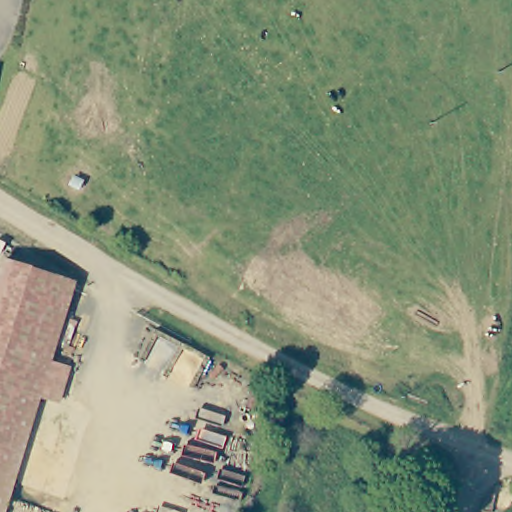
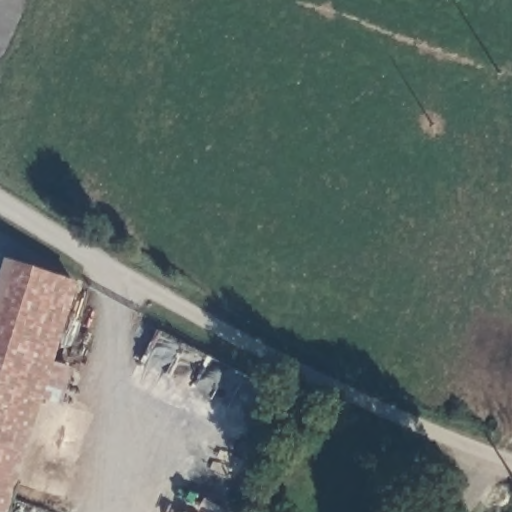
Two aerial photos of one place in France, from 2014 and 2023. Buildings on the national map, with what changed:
unchanged [(71,365),(62,399),(42,393),(6,512),(0,512),(0,279),(6,258),(76,280),(52,360),(71,365)]
unchanged [(438,512),(410,512),(423,458),(450,466),(438,512)]

